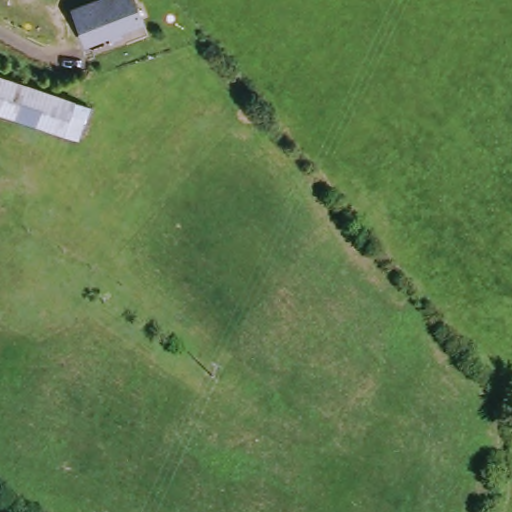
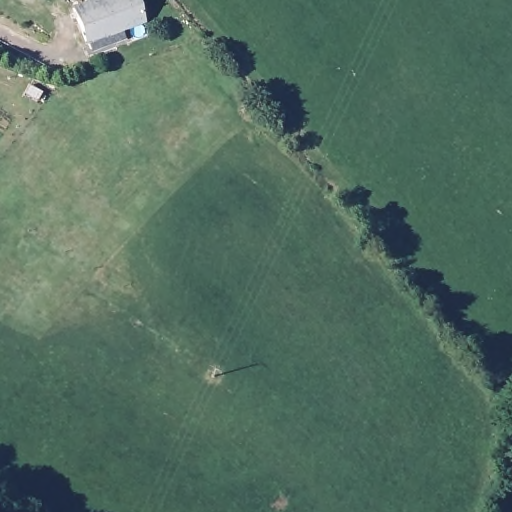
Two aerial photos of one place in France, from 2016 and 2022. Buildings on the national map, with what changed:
unchanged [(64,5),(80,0),(126,0),(132,19),(76,39),(64,5)]
demolished [(100,105),(86,142),(0,111),(0,71),(100,105)]

